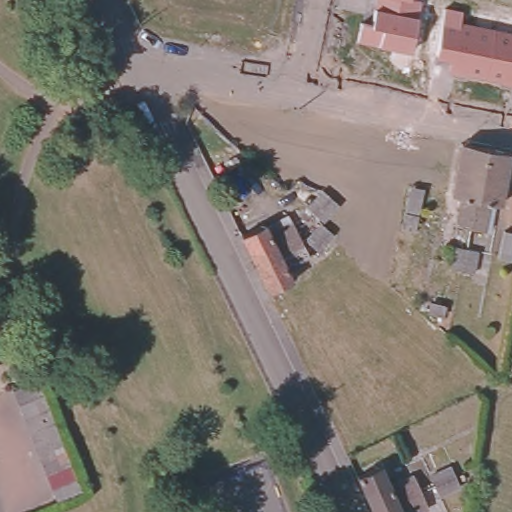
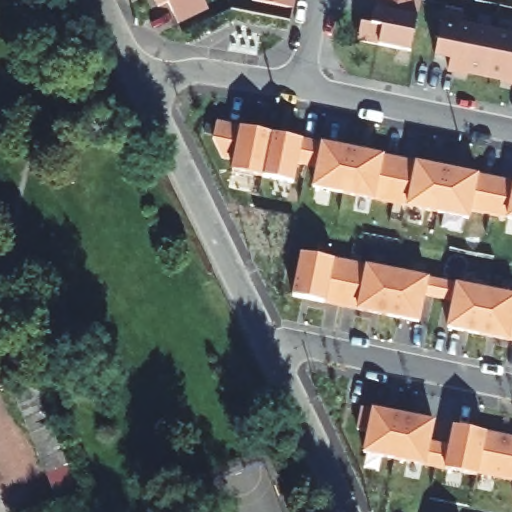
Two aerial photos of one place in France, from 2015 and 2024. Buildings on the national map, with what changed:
new [(168,4),(159,8),(155,0),(204,0),(209,11),(179,26),(168,4)]
new [(252,0),(295,0),(292,10),(251,1),(252,0)]
unchanged [(421,2),(408,55),(356,45),(360,24),(373,26),(376,12),(376,0),(409,0),(409,1),(421,2)]
unchanged [(460,24),(512,34),(512,85),(447,72),(448,62),(436,61),(445,9),(462,12),(460,24)]
demolished [(254,107),(268,111),(262,142),(247,139),(254,107)]
demolished [(320,171),(326,142),(301,137),(307,111),(346,119),(335,174),(320,171)]
demolished [(385,127),(380,153),(356,149),(350,177),(335,174),(346,119),(385,127)]
new [(470,212),(470,221),(373,202),(311,188),(315,169),(297,166),(294,185),(230,171),(232,161),(221,159),(213,139),(215,122),(240,127),(321,142),(512,181),(512,220),(507,220),(470,212)]
demolished [(455,224),(460,195),(451,192),(461,142),(486,147),(470,227),(455,224)]
demolished [(512,152),(501,203),(489,201),(482,230),(470,227),(486,147),(512,152)]
demolished [(306,234),(309,231),(322,217),(313,209),(306,202),(321,186),(328,192),(330,194),(338,201),(326,212),(325,220),(327,222),(330,224),(338,232),(322,248),(315,241),(306,234)]
demolished [(265,217),(271,230),(293,219),(301,235),(255,257),(240,230),(265,217)]
demolished [(310,250),(287,261),(293,273),(268,286),(255,257),(301,235),(310,250)]
demolished [(468,272),(460,270),(451,267),(455,245),(465,247),(473,249),(468,272)]
new [(451,302),(424,297),(418,322),(357,308),(324,302),(291,296),(301,252),(430,277),(512,294),(512,341),(446,327),(451,302)]
unchanged [(46,393),(51,407),(54,414),(56,422),(62,436),(67,449),(67,450),(72,463),(78,478),(80,485),(83,492),(56,502),(50,488),(45,475),(40,461),(35,447),(29,432),(23,417),(18,405),(13,390),(40,379),(46,393)]
new [(447,470),(361,452),(366,432),(356,431),(361,407),(372,408),(435,422),(431,442),(449,447),(453,425),(488,433),(512,437),(512,483),(478,476),(447,470)]
demolished [(351,476),(375,466),(385,486),(407,475),(415,491),(370,512),(368,512),(351,476)]
demolished [(440,495),(435,485),(430,476),(448,467),(453,476),(457,487),(440,495)]
demolished [(423,508),(415,512),(370,512),(415,491),(423,508)]

